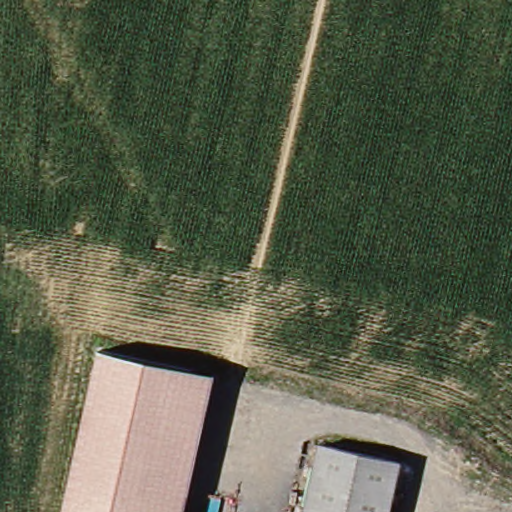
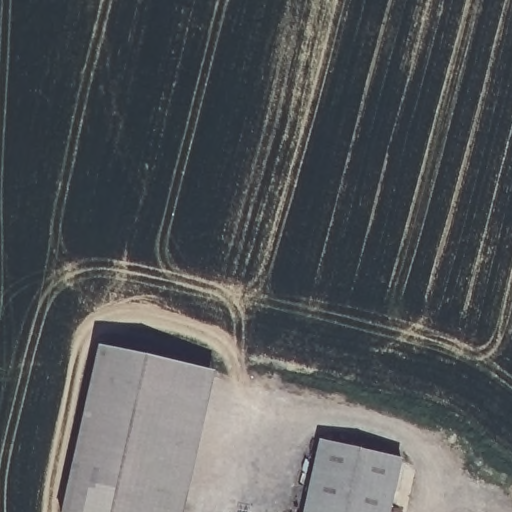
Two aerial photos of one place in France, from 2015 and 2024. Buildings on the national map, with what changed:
unchanged [(175,512),(75,512),(115,351),(210,374),(175,512)]
unchanged [(329,441),(403,458),(392,512),(312,512),(329,441)]

